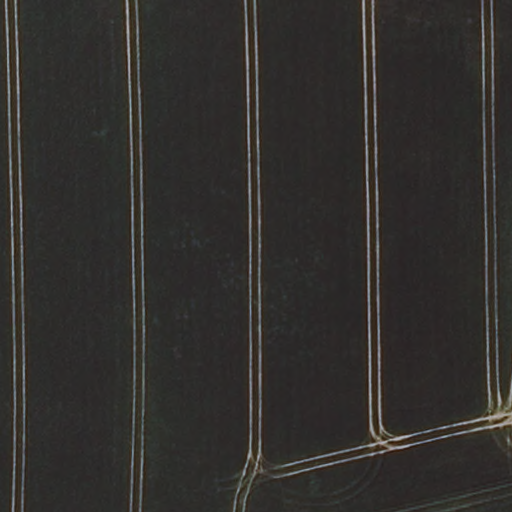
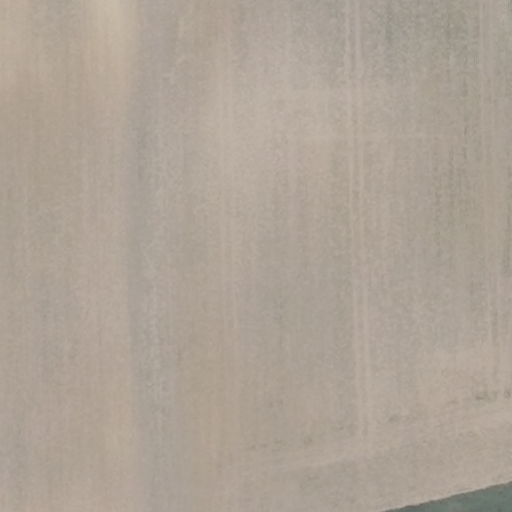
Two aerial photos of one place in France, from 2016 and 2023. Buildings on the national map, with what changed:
[]

